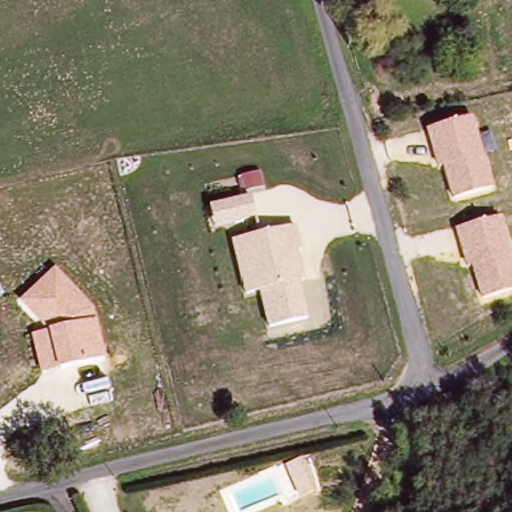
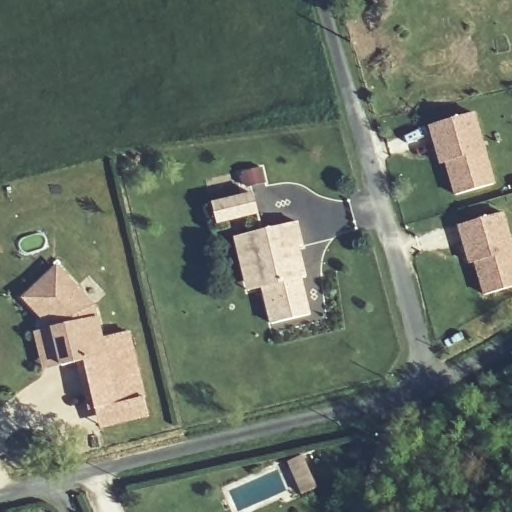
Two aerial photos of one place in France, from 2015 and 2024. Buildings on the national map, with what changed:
unchanged [(494,184),(454,197),(444,164),(439,165),(428,127),(474,114),(494,184)]
unchanged [(253,191),(258,215),(216,226),(210,201),(253,191)]
unchanged [(512,288),(483,297),(474,262),(469,263),(458,226),(503,211),(512,244),(512,288)]
unchanged [(296,224),(308,276),(301,280),(309,316),(270,325),(261,289),(246,293),(233,238),(296,224)]
unchanged [(94,304),(106,358),(41,372),(33,332),(47,328),(18,299),(55,263),(94,304)]
new [(83,363),(106,358),(101,338),(129,330),(144,397),(148,416),(99,427),(94,409),(87,411),(76,364),(83,363)]
new [(301,490),(293,471),(289,462),(304,456),(308,463),(316,485),(301,490)]

